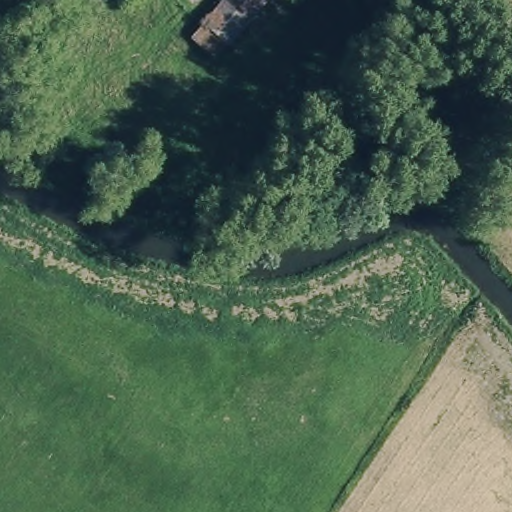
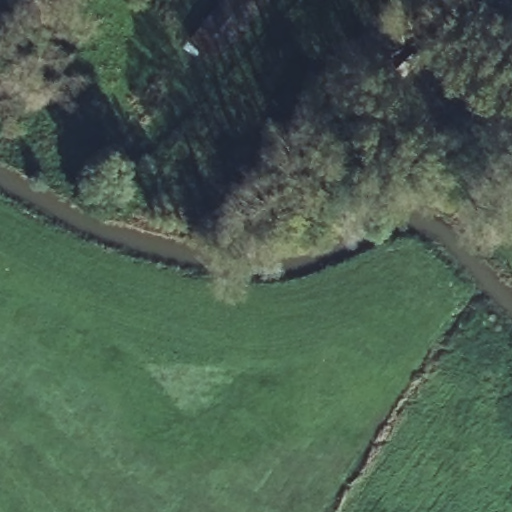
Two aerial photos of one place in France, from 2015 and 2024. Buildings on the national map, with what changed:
unchanged [(191,23),(214,0),(261,0),(251,10),(215,46),(191,23)]

